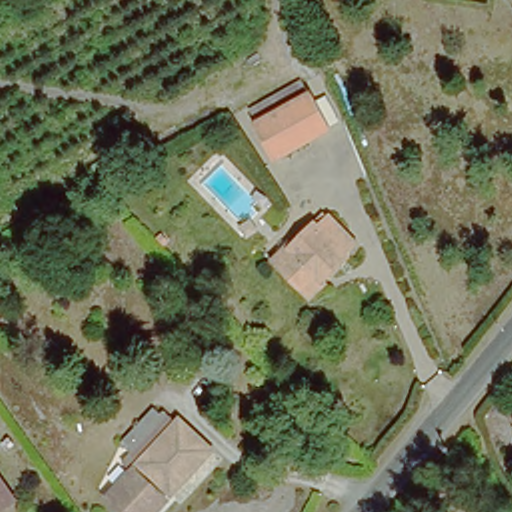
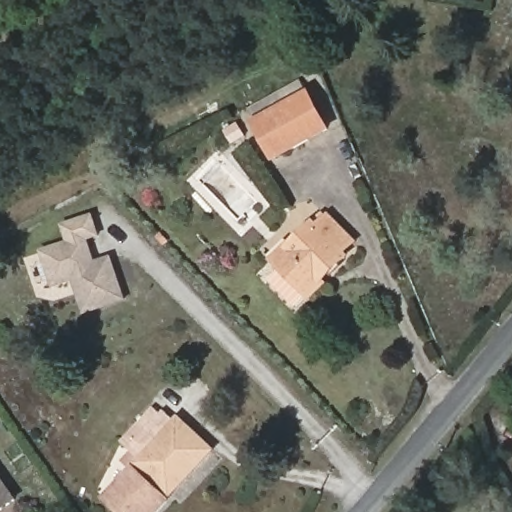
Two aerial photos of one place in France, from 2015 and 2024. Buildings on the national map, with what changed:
unchanged [(257,116),(305,90),(324,126),(276,151),(257,116)]
unchanged [(325,221),(339,214),(352,243),(342,249),(345,256),(296,282),(279,251),(295,241),(291,234),(323,218),(325,221)]
new [(121,298),(81,311),(70,277),(50,284),(40,249),(67,241),(61,224),(90,215),(95,234),(84,238),(91,262),(107,257),(121,298)]
unchanged [(105,493),(126,470),(119,459),(128,450),(120,441),(156,404),(172,416),(179,411),(215,447),(158,512),(126,512),(105,493)]
unchanged [(0,510),(0,472),(18,498),(0,510)]

